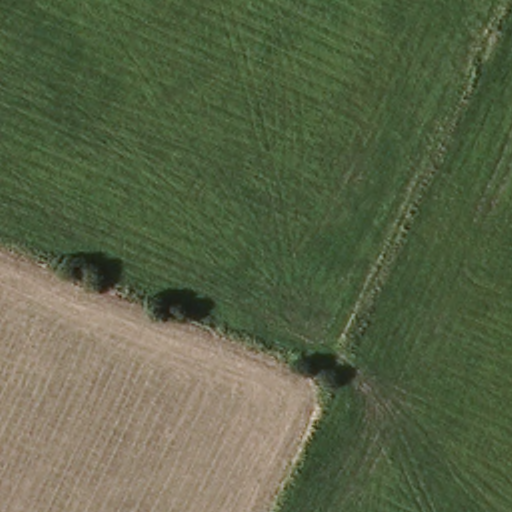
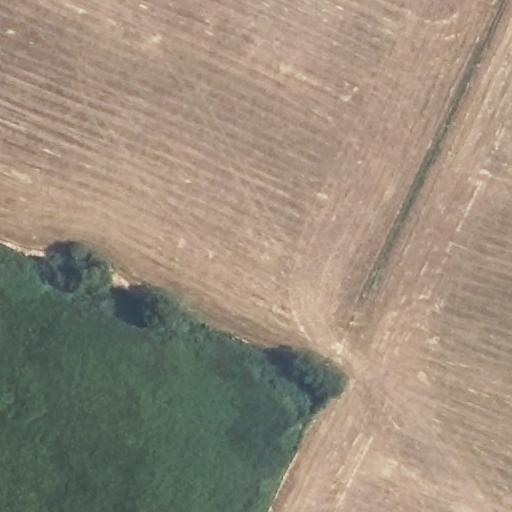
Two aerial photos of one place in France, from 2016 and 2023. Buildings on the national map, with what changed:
[]

